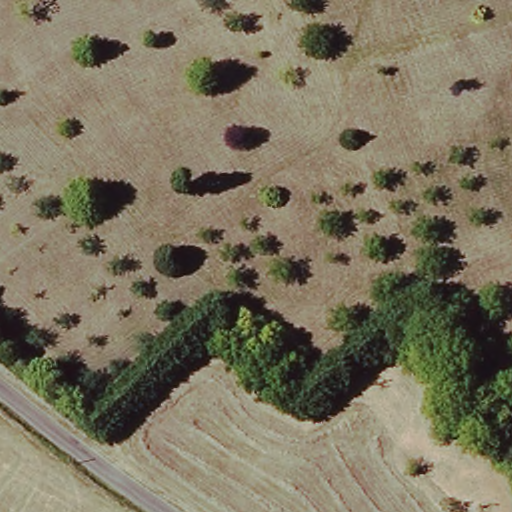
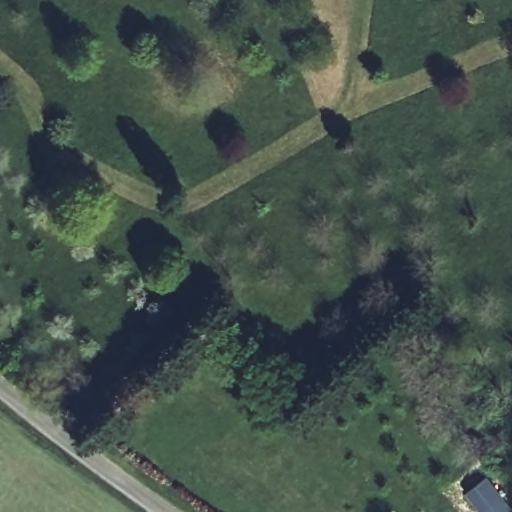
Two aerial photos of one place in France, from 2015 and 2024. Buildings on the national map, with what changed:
new [(482,512),(467,493),(487,477),(512,508),(512,512),(482,512)]

